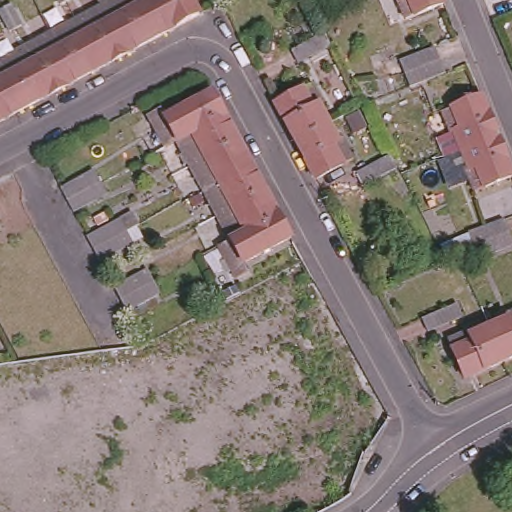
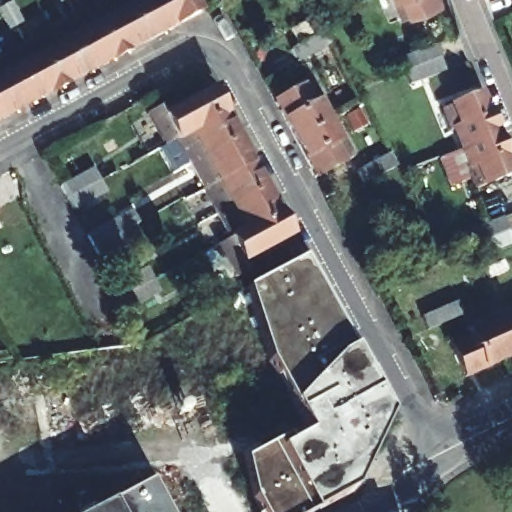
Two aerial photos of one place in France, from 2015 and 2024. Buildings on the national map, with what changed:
unchanged [(78,0),(79,2),(73,5),(67,9),(62,0),(78,0)]
unchanged [(108,5),(116,0),(137,0),(154,33),(129,46),(108,5)]
unchanged [(137,0),(166,0),(177,21),(154,33),(137,0)]
unchanged [(180,19),(177,21),(166,0),(197,0),(200,8),(180,19)]
unchanged [(404,17),(397,0),(445,0),(445,1),(404,17)]
unchanged [(127,47),(105,59),(82,18),(108,5),(129,46),(127,47)]
unchanged [(17,8),(28,29),(22,31),(15,35),(5,14),(10,11),(17,8)]
unchanged [(77,73),(56,31),(82,18),(105,59),(77,73)]
unchanged [(65,80),(53,86),(32,45),(56,31),(77,73),(65,80)]
unchanged [(323,31),(330,44),(297,61),(291,49),(323,31)]
unchanged [(28,100),(5,58),(32,45),(53,86),(28,100)]
unchanged [(445,70),(410,85),(402,64),(400,60),(435,45),(439,54),(445,70)]
unchanged [(3,113),(0,107),(0,61),(5,58),(28,100),(4,113),(3,113)]
unchanged [(272,97),(298,83),(298,81),(310,75),(319,94),(317,96),(327,116),(292,134),(272,97)]
unchanged [(165,142),(147,108),(162,101),(167,110),(215,85),(227,109),(177,136),(165,142)]
unchanged [(460,120),(455,121),(446,100),(457,95),(457,97),(488,85),(493,98),(505,125),(468,140),(460,120)]
unchanged [(0,107),(3,113),(0,115),(0,107)]
unchanged [(177,136),(227,109),(242,134),(191,161),(177,136)]
unchanged [(335,134),(340,132),(350,152),(312,172),(292,134),(327,116),(335,134)]
unchanged [(505,125),(512,144),(512,166),(490,175),(490,177),(478,182),(470,159),(475,158),(468,140),(505,125)]
unchanged [(191,161),(242,134),(254,157),(203,185),(191,161)]
unchanged [(389,155),(395,165),(362,182),(356,172),(389,155)]
unchanged [(203,185),(254,157),(267,182),(216,210),(203,185)]
unchanged [(76,211),(69,199),(63,187),(97,169),(102,181),(110,193),(76,211)]
unchanged [(216,210),(267,182),(270,187),(281,207),(229,234),(216,210)]
unchanged [(293,231),(245,255),(250,265),(237,273),(219,240),(229,234),(281,207),(293,231)]
unchanged [(103,260),(96,247),(90,235),(123,218),(130,229),(136,242),(103,260)]
unchanged [(482,262),(477,250),(472,238),(507,223),(512,235),(512,236),(512,249),(482,262)]
new [(250,502),(241,462),(277,443),(281,450),(305,437),(290,408),(267,356),(245,288),(302,258),(353,350),(388,419),(352,494),(317,512),(257,512),(250,502)]
unchanged [(117,284),(150,267),(156,278),(163,291),(129,309),(123,296),(117,284)]
unchanged [(457,299),(462,311),(428,329),(423,317),(457,299)]
unchanged [(485,324),(505,314),(503,309),(512,305),(512,353),(500,358),(485,324)]
unchanged [(462,375),(449,347),(448,347),(444,337),(462,328),(464,332),(485,324),(500,358),(462,375)]
new [(150,483),(165,512),(95,512),(150,483)]

